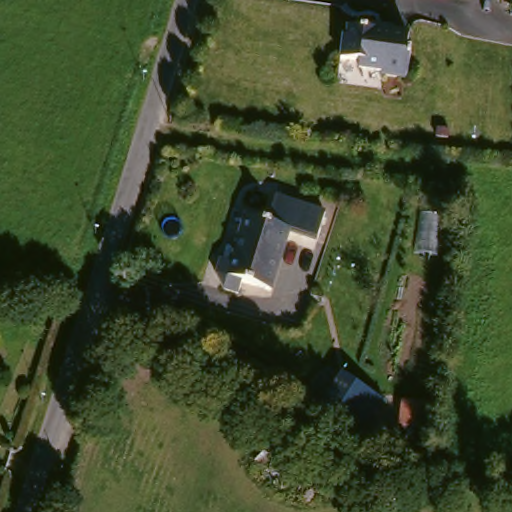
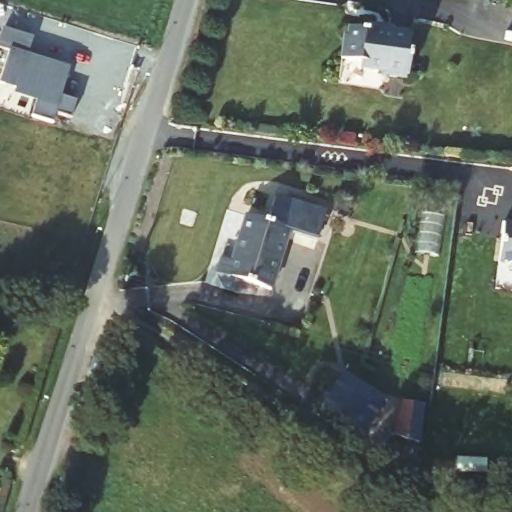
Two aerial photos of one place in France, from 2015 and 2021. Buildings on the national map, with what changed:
new [(28,53),(69,68),(61,97),(76,101),(71,117),(56,112),(52,122),(32,116),(36,104),(13,95),(15,88),(0,84),(0,80),(8,50),(0,48),(0,40),(3,27),(33,36),(28,53)]
unchanged [(346,37),(346,33),(368,34),(368,31),(389,33),(389,40),(408,41),(406,56),(411,56),(409,84),(403,84),(403,87),(379,86),(380,79),(357,75),(357,69),(338,67),(341,42),(346,37)]
unchanged [(321,221),(313,246),(294,239),(287,239),(268,298),(233,287),(226,274),(241,224),(264,231),(273,206),(321,221)]
new [(503,220),(512,221),(512,262),(498,260),(503,220)]
unchanged [(344,372),(394,406),(367,448),(316,414),(344,372)]

